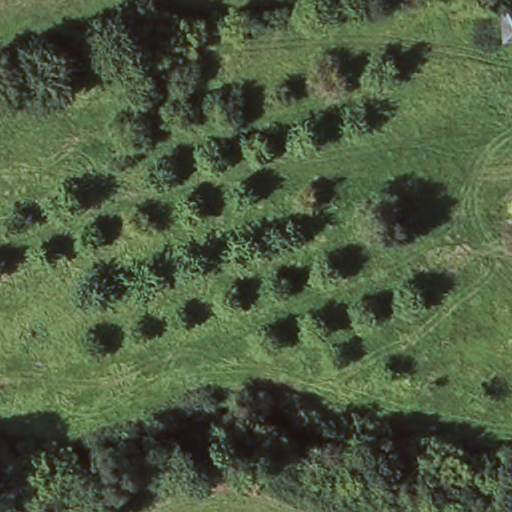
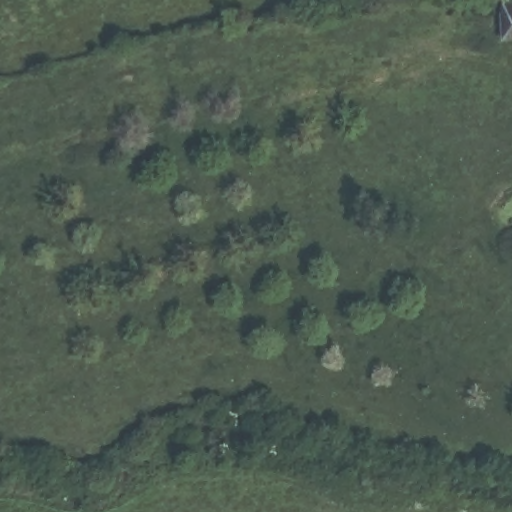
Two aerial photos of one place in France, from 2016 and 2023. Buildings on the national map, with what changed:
unchanged [(512,36),(500,37),(498,0),(512,0),(512,36)]

